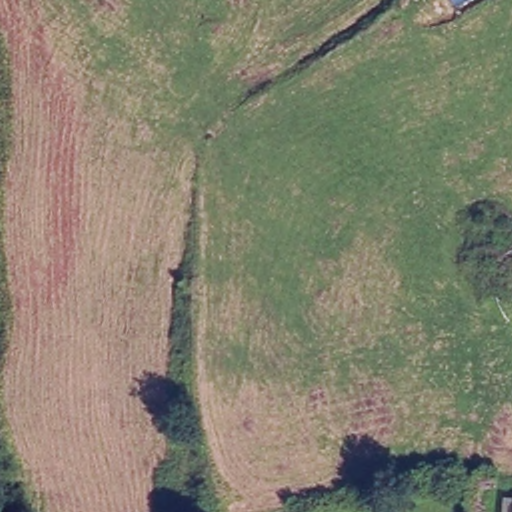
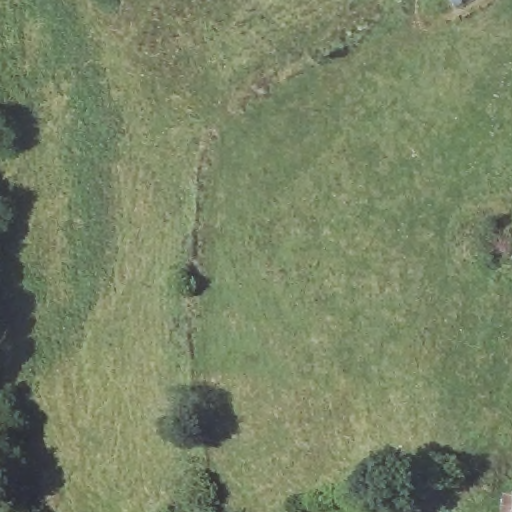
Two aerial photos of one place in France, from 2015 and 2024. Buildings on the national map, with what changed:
unchanged [(451,0),(456,0),(452,2),(451,0)]

